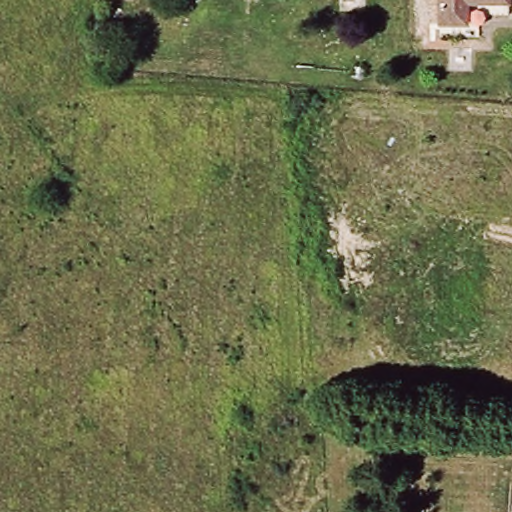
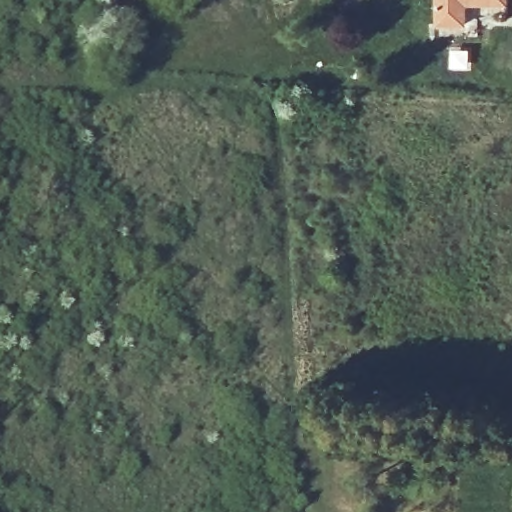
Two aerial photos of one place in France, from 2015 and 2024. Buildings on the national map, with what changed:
unchanged [(503,5),(464,6),(462,27),(434,26),(434,0),(503,0),(503,5)]

